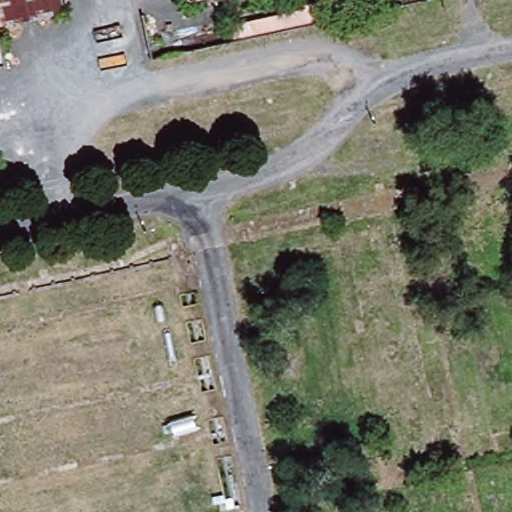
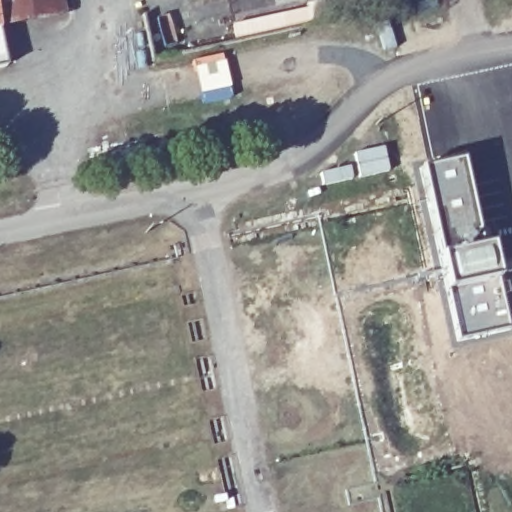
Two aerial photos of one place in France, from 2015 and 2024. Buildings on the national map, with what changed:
unchanged [(63,0),(66,12),(2,28),(0,15),(0,0),(63,0)]
unchanged [(187,0),(205,0),(187,4),(187,0)]
unchanged [(305,8),(305,3),(323,0),(326,19),(232,41),(231,25),(305,8)]
unchanged [(0,66),(0,54),(2,65),(0,66)]
new [(383,146),(391,170),(359,178),(352,153),(383,146)]
new [(483,244),(492,241),(502,274),(512,324),(512,329),(457,342),(440,268),(422,167),(462,158),(483,244)]
new [(512,324),(502,274),(512,272),(512,324)]

